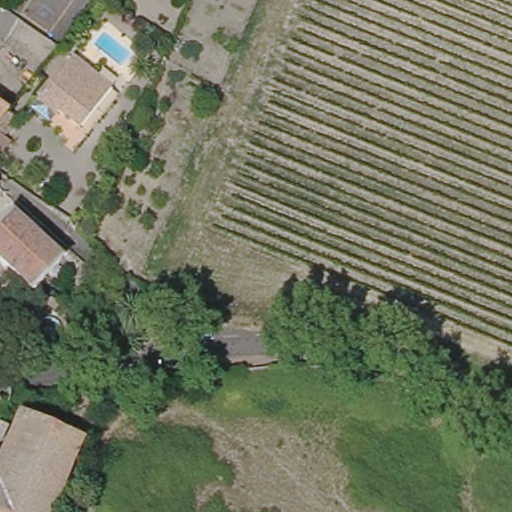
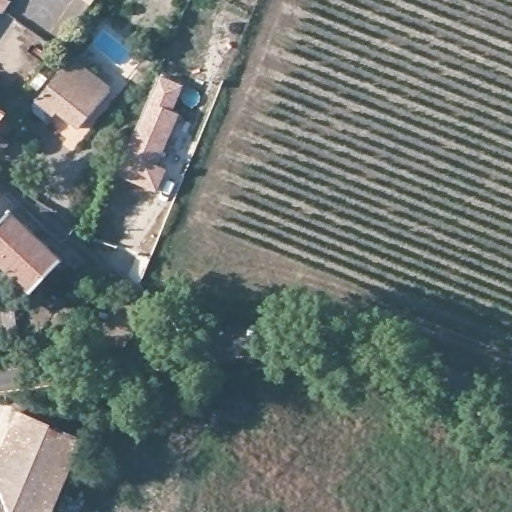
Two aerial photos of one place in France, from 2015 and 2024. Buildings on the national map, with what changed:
unchanged [(78,16),(92,0),(100,0),(102,1),(85,22),(78,16)]
unchanged [(67,56),(109,88),(78,127),(55,110),(52,115),(32,102),(67,56)]
new [(174,111),(180,113),(158,166),(167,169),(156,192),(119,175),(162,76),(184,86),(174,111)]
unchanged [(0,114),(0,107),(3,109),(0,114)]
unchanged [(0,227),(12,213),(43,240),(17,272),(0,258),(0,227)]
unchanged [(20,275),(17,272),(43,240),(65,258),(37,290),(20,275)]
unchanged [(82,439),(51,512),(0,512),(0,460),(22,412),(82,439)]

